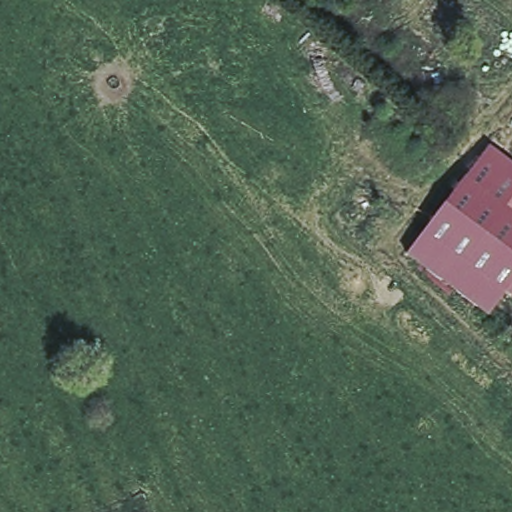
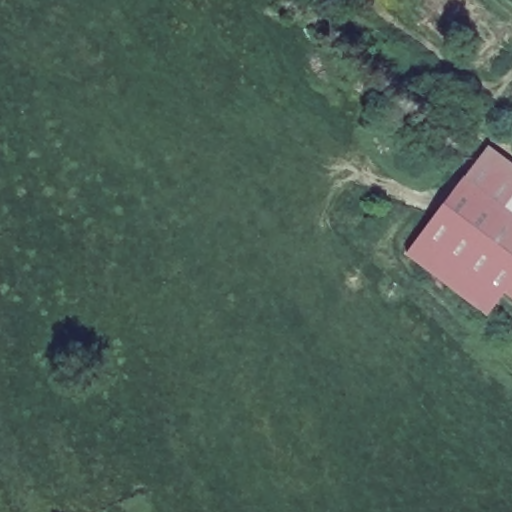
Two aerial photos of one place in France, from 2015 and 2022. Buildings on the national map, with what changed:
unchanged [(487,145),(512,163),(512,274),(500,289),(487,316),(405,253),(487,145)]
unchanged [(506,290),(512,282),(512,294),(506,290)]

